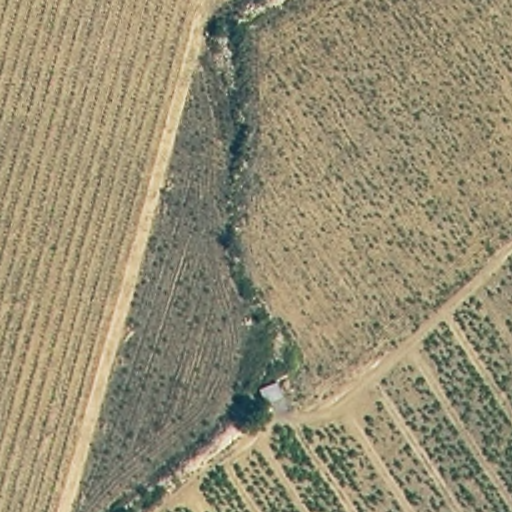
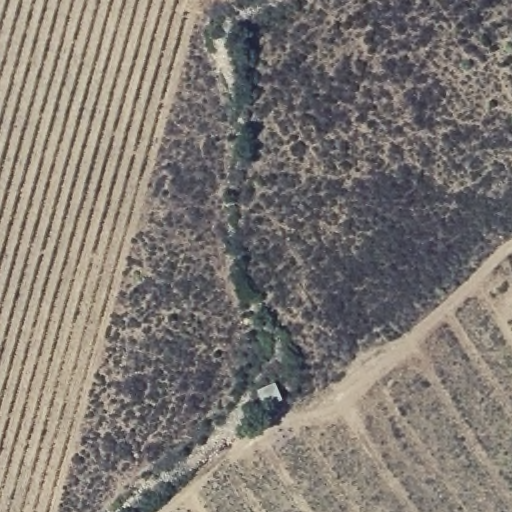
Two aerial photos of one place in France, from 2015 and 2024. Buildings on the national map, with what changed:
unchanged [(262,408),(254,388),(277,380),(283,398),(262,408)]

